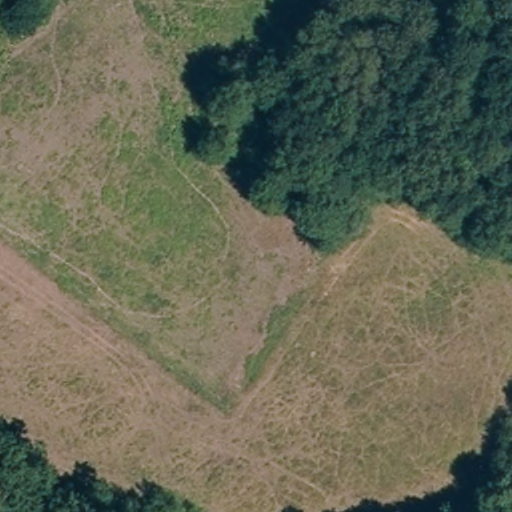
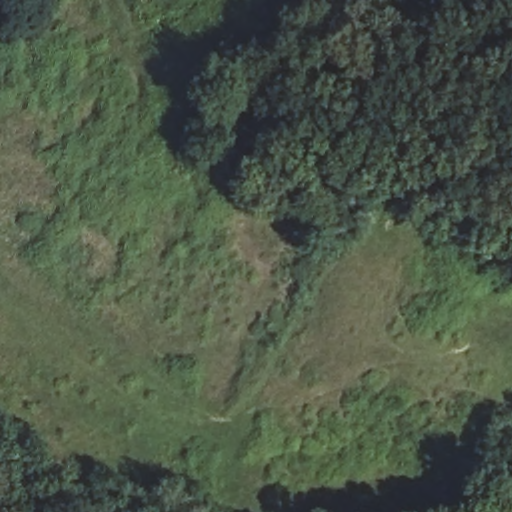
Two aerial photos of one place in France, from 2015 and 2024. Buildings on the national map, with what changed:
[]

